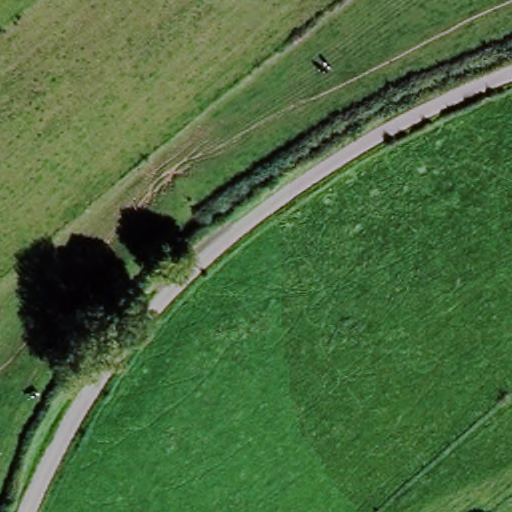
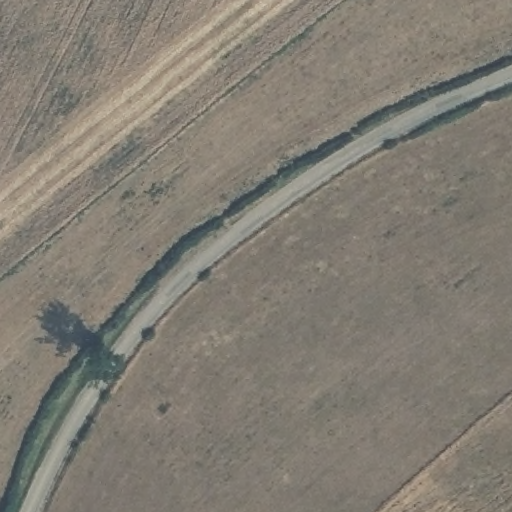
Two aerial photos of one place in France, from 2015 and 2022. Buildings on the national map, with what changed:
[]

